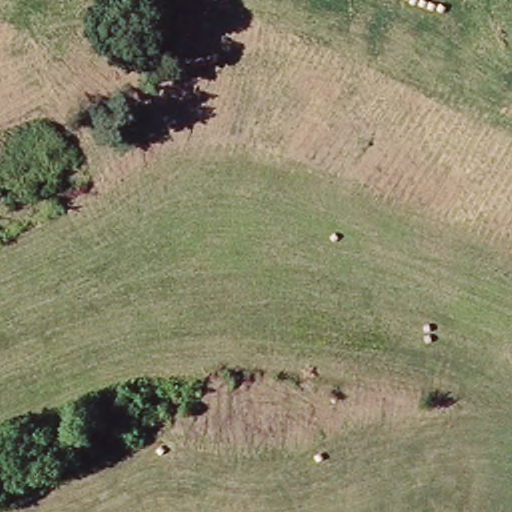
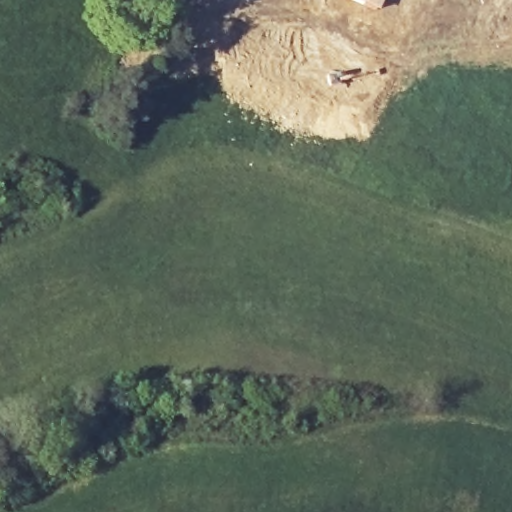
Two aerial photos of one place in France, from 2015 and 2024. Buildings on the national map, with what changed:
new [(378,11),(354,0),(383,0),(378,11)]

